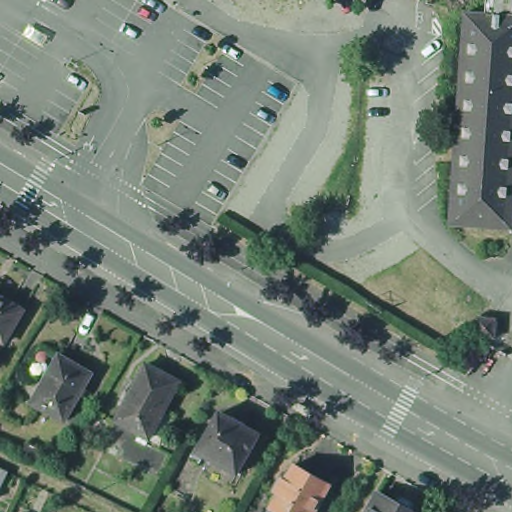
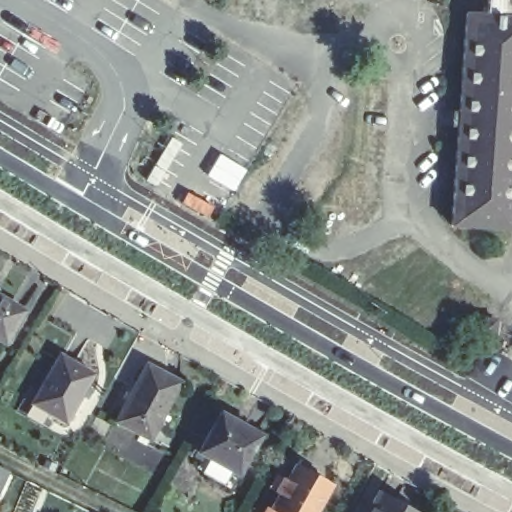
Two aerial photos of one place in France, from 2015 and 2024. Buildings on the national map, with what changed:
unchanged [(457,215),(472,3),(490,4),(490,0),(512,0),(512,220),(457,215)]
unchanged [(7,339),(0,336),(0,292),(26,306),(7,339)]
unchanged [(492,337),(475,335),(476,319),(493,320),(492,337)]
unchanged [(57,351),(89,369),(81,384),(90,389),(86,396),(77,390),(62,417),(30,399),(57,351)]
unchanged [(129,398),(125,396),(133,379),(139,383),(153,359),(186,379),(170,406),(180,412),(162,439),(120,415),(129,398)]
unchanged [(232,403),(245,411),(248,404),(260,411),(255,418),(272,426),(243,475),(210,456),(216,445),(210,442),(232,403)]
unchanged [(285,488),(281,486),(288,473),(292,475),(301,460),(338,481),(321,512),(281,512),(283,508),(276,503),(285,488)]
unchanged [(10,478),(0,496),(0,497),(0,474),(10,478)]
unchanged [(380,491),(397,500),(402,492),(418,501),(413,509),(418,512),(368,512),(380,491)]

